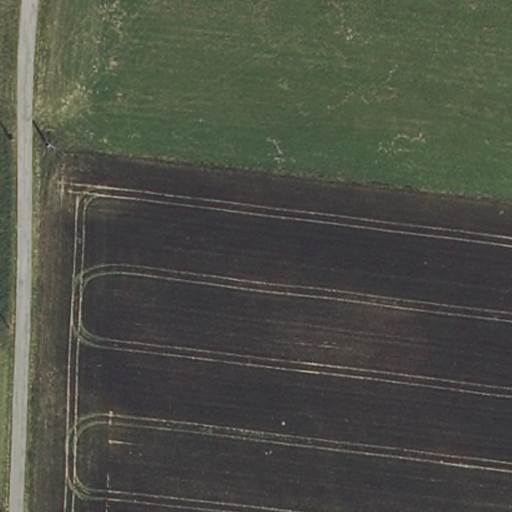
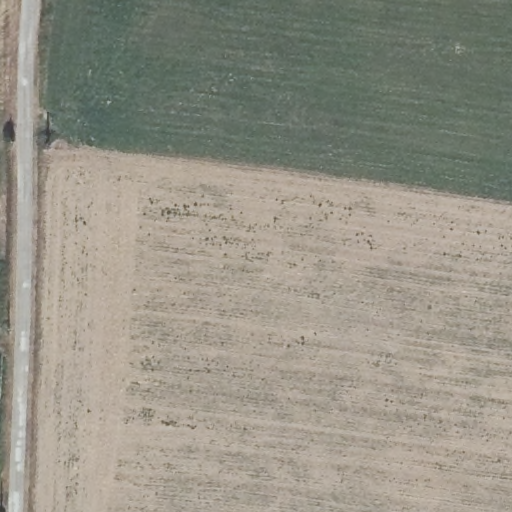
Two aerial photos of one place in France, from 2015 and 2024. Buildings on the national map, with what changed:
[]

